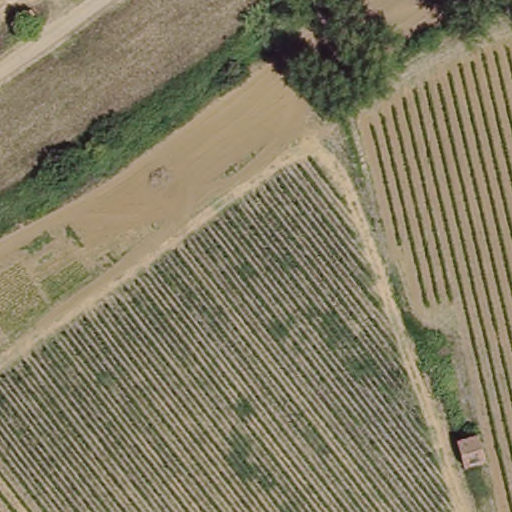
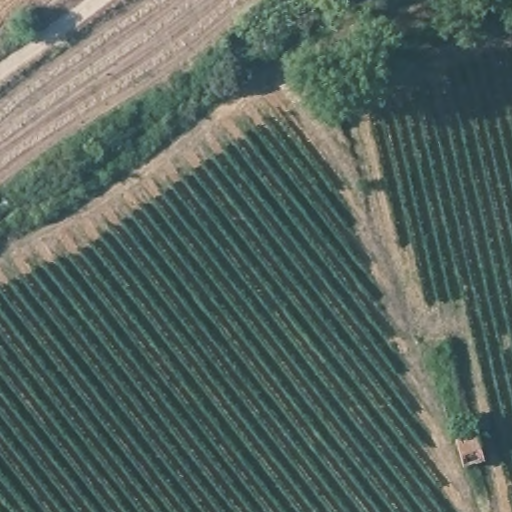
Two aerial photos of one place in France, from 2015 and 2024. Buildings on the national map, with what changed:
unchanged [(28,4),(39,19),(15,37),(3,20),(28,4)]
unchanged [(462,475),(452,441),(473,435),(484,469),(462,475)]

